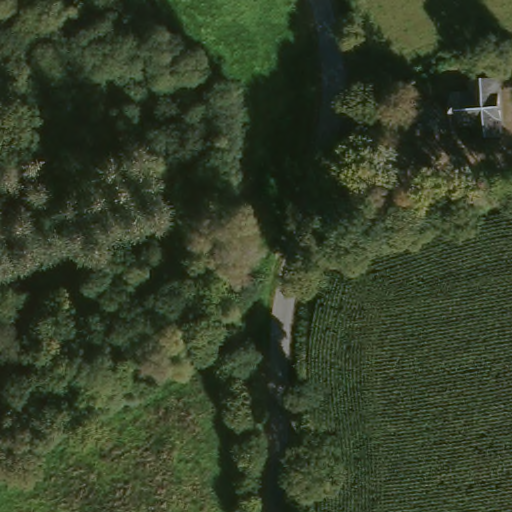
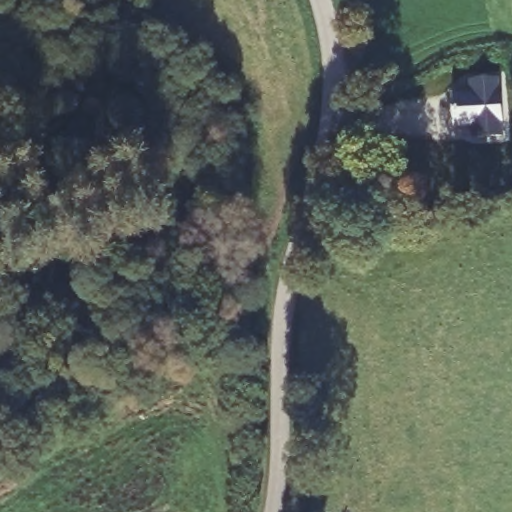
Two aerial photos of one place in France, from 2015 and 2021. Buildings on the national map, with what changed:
unchanged [(505,140),(468,140),(468,124),(451,124),(450,88),(468,88),(469,71),(502,70),(505,140)]

